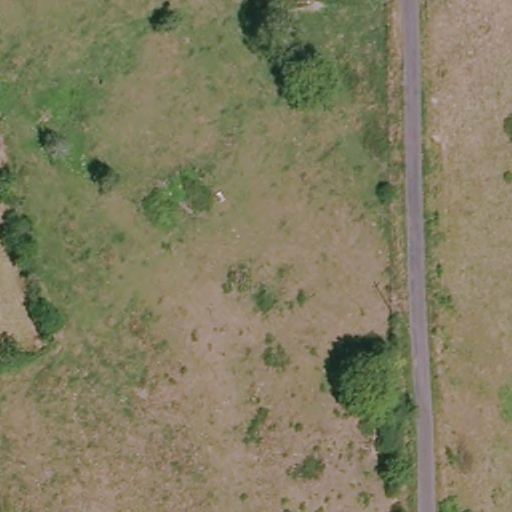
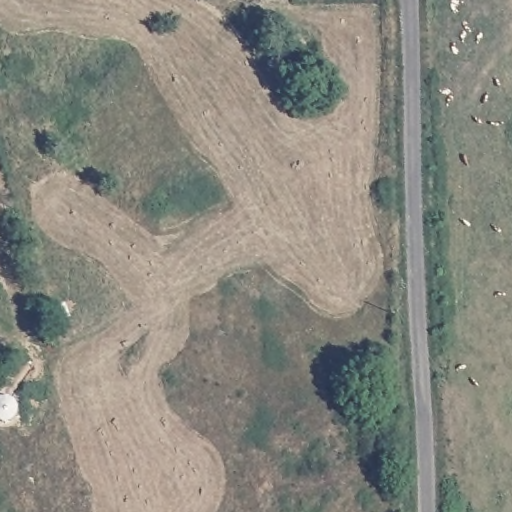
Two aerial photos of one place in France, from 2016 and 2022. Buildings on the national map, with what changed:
[]

